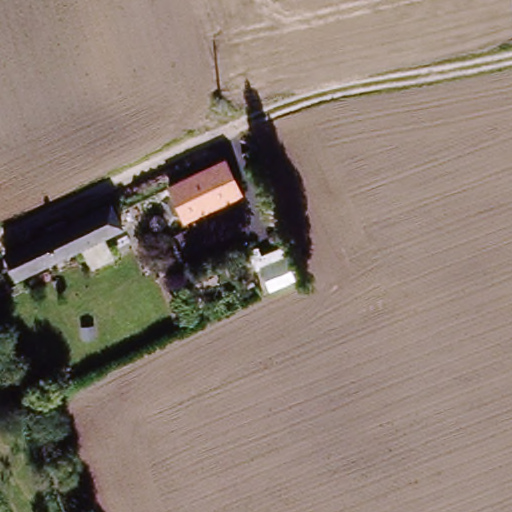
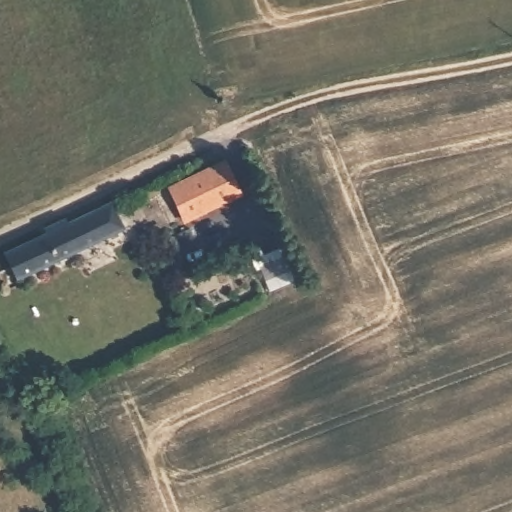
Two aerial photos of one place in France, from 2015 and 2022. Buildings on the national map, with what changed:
unchanged [(226,159),(243,197),(183,223),(167,185),(226,159)]
unchanged [(125,233),(21,281),(8,256),(37,242),(33,235),(55,224),(58,232),(113,206),(125,233)]

